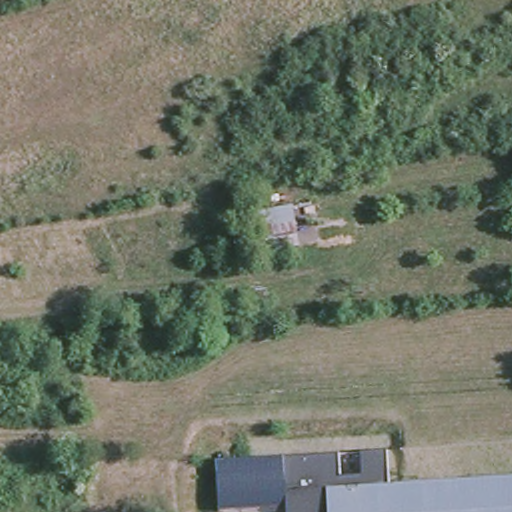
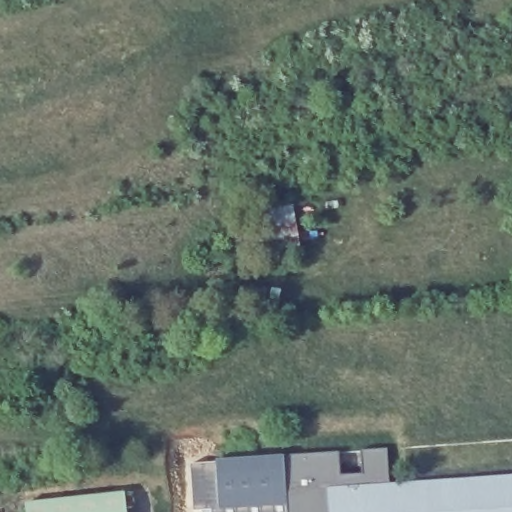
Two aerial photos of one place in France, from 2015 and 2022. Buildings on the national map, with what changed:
unchanged [(258,208),(293,204),(297,241),(261,243),(258,208)]
unchanged [(328,512),(285,512),(284,493),(274,495),(274,502),(217,505),(214,456),(337,446),(340,470),(361,468),(359,445),(362,444),(386,442),(389,481),(357,483),(357,478),(346,478),(347,484),(326,486),(328,512)]
unchanged [(326,486),(347,484),(346,478),(357,478),(357,483),(389,481),(512,473),(512,512),(328,512),(326,486)]
new [(25,502),(126,491),(127,512),(25,512),(25,502)]

